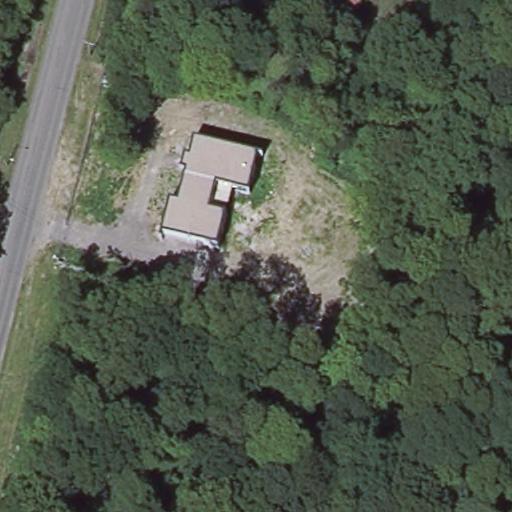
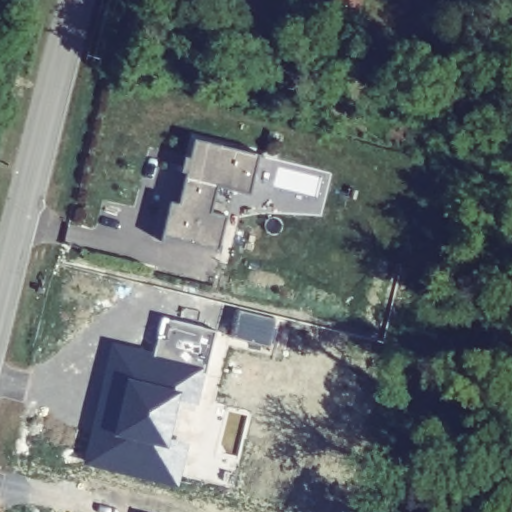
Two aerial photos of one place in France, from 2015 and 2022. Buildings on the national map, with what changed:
unchanged [(333,2),(334,0),(359,0),(356,10),(333,2)]
unchanged [(169,204),(177,205),(186,174),(181,172),(185,156),(190,157),(195,140),(258,155),(248,192),(233,189),(217,249),(161,234),(169,204)]
new [(233,305),(270,315),(263,343),(226,334),(233,305)]
new [(93,434),(89,433),(93,412),(108,416),(111,399),(97,395),(102,375),(107,376),(113,352),(139,358),(140,352),(152,355),(161,316),(212,328),(201,373),(196,371),(190,398),(170,394),(160,438),(179,442),(170,480),(144,474),(145,470),(130,466),(130,462),(89,453),(93,434)]

